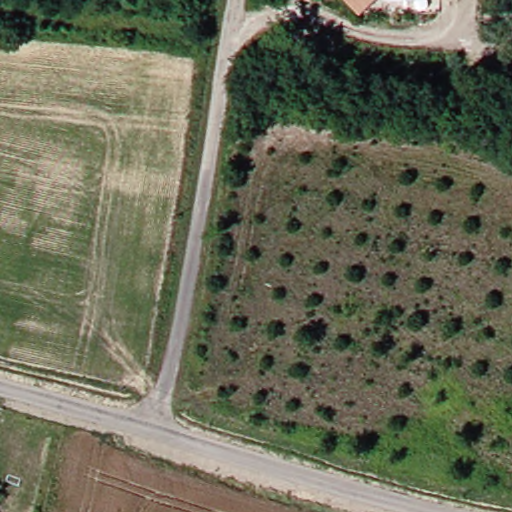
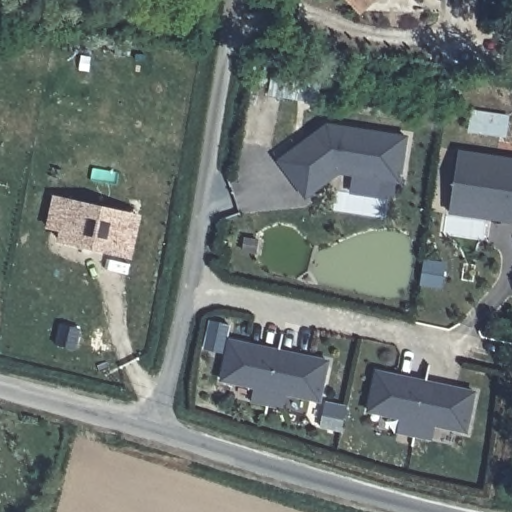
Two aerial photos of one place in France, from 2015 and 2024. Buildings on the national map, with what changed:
unchanged [(349,0),(378,0),(363,15),(349,0)]
new [(339,168),(304,193),(282,162),(333,125),(409,137),(402,178),(381,176),(379,193),(351,188),(353,171),(339,168)]
new [(460,152),(512,160),(512,222),(451,213),(453,202),(460,152)]
new [(131,255),(116,252),(61,241),(64,230),(49,227),(55,198),(70,202),(125,213),(140,216),(131,255)]
new [(424,261),(446,264),(443,289),(420,286),(424,261)]
new [(219,381),(228,338),(329,360),(321,402),(287,396),(284,408),(250,402),(253,388),(219,381)]
new [(366,412),(375,369),(476,391),(468,433),(435,426),(432,439),(396,433),(399,419),(366,412)]

